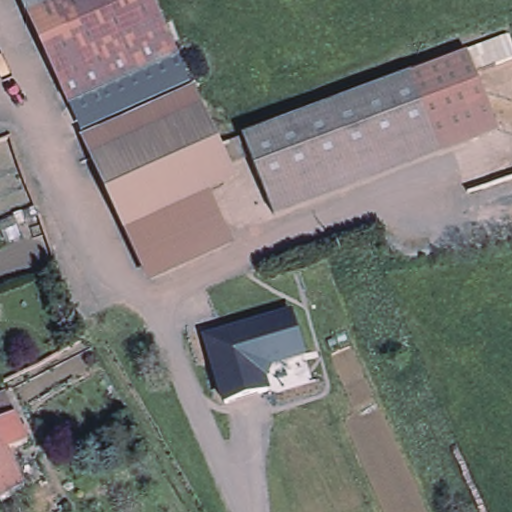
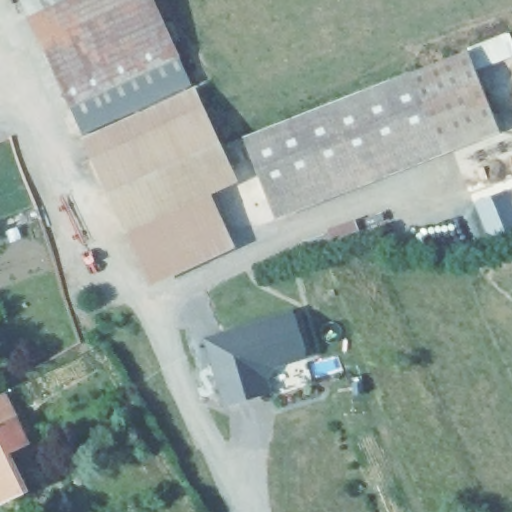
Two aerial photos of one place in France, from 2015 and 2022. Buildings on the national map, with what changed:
unchanged [(176,60),(66,109),(18,0),(149,0),(176,60)]
unchanged [(512,55),(512,59),(474,74),(490,115),(435,136),(410,75),(466,54),(505,38),(512,55)]
unchanged [(410,75),(435,136),(372,160),(351,98),(410,75)]
unchanged [(194,92),(198,102),(202,110),(162,127),(92,157),(88,149),(85,140),(194,92)]
unchanged [(220,148),(243,139),(351,98),(372,160),(266,201),(251,159),(228,168),(235,182),(208,195),(195,201),(126,232),(92,157),(162,127),(202,110),(220,148)]
unchanged [(231,247),(150,284),(142,268),(126,232),(195,201),(208,195),(225,231),(231,247)]
unchanged [(274,370),(269,381),(274,394),(223,406),(200,335),(293,310),(308,358),(274,370)]
unchanged [(12,420),(0,426),(0,396),(12,420)]
unchanged [(24,443),(10,450),(14,456),(7,459),(22,491),(0,502),(0,426),(12,420),(24,443)]

